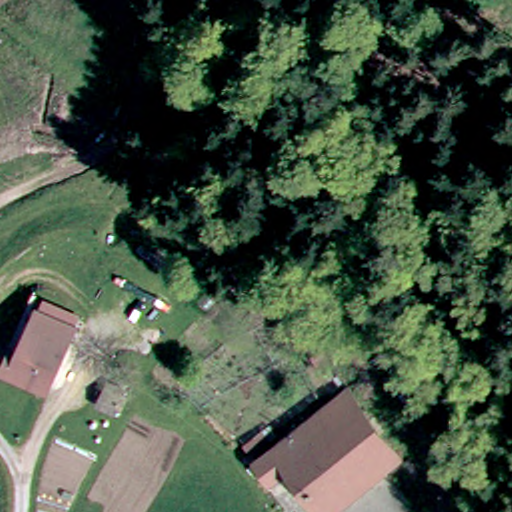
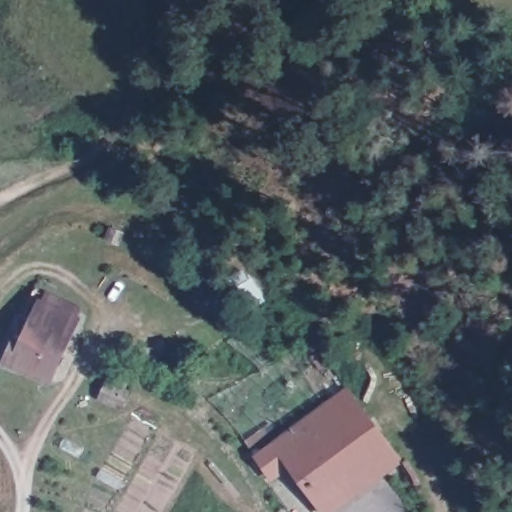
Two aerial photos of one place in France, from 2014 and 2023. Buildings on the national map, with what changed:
unchanged [(10,366),(28,321),(33,308),(73,324),(67,338),(49,382),(10,366)]
unchanged [(264,459),(275,451),(351,396),(405,467),(342,512),(323,512),(295,476),(285,486),(264,459)]
unchanged [(270,432),(254,445),(247,436),(263,423),(270,432)]

